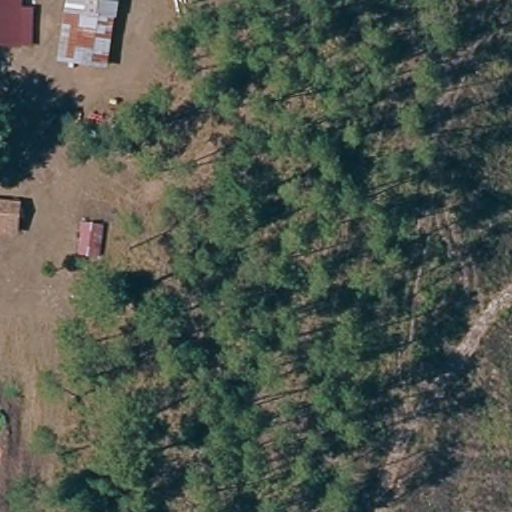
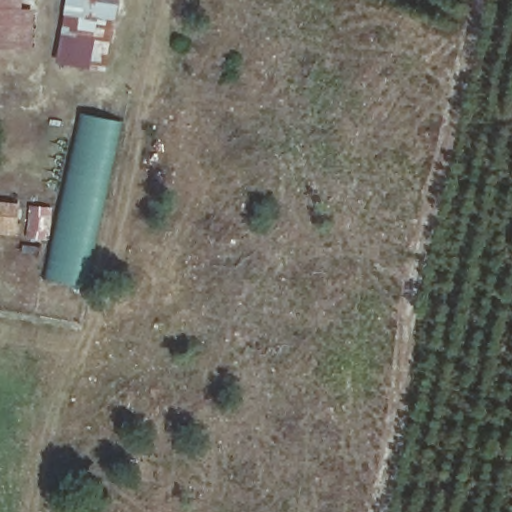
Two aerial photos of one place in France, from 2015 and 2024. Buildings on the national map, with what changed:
unchanged [(41,22),(41,45),(0,45),(0,0),(23,0),(23,22),(41,22)]
unchanged [(101,0),(100,13),(117,15),(110,69),(57,64),(65,0),(101,0)]
new [(83,112),(122,120),(84,283),(48,275),(83,112)]
unchanged [(18,199),(13,235),(0,232),(0,195),(18,199)]

